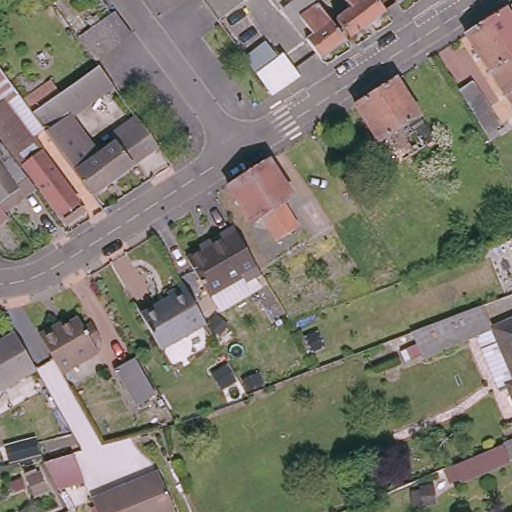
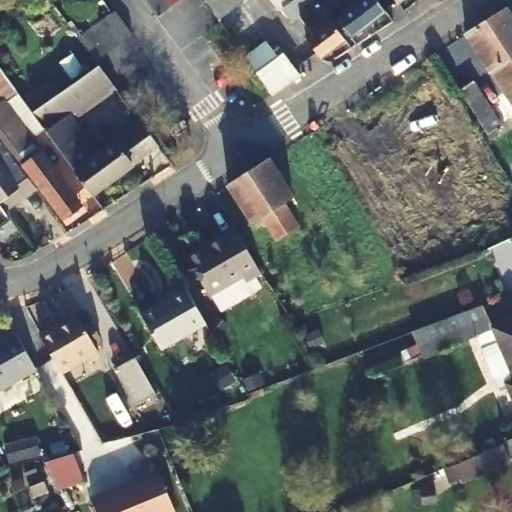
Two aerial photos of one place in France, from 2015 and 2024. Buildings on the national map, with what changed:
unchanged [(171,14),(160,22),(144,0),(188,0),(184,4),(171,14)]
unchanged [(201,0),(254,0),(220,25),(201,0)]
unchanged [(302,23),(305,20),(287,0),(313,0),(347,46),(322,64),(309,44),(299,33),(299,26),(302,23)]
unchanged [(353,42),(340,24),(353,14),(343,0),(375,0),(389,18),(353,42)]
unchanged [(392,0),(403,0),(396,5),(392,0)]
unchanged [(502,0),(512,15),(512,60),(482,14),(502,0)]
unchanged [(100,23),(107,16),(111,14),(128,36),(117,45),(105,55),(95,64),(77,40),(87,32),(100,23)]
unchanged [(512,60),(512,99),(508,101),(461,26),(482,14),(512,60)]
unchanged [(253,73),(280,54),(296,75),(269,94),(253,73)]
unchanged [(95,64),(110,84),(69,115),(97,156),(114,144),(129,164),(88,195),(40,129),(28,114),(95,64)]
unchanged [(58,214),(0,138),(0,75),(7,84),(13,93),(28,114),(40,129),(27,139),(74,202),(58,214)]
demolished [(379,144),(355,107),(375,94),(396,81),(419,118),(410,124),(426,149),(413,157),(404,163),(389,138),(379,144)]
unchanged [(474,92),(497,128),(484,135),(462,100),(474,92)]
unchanged [(114,144),(107,134),(143,108),(151,116),(166,139),(129,164),(114,144)]
unchanged [(1,212),(0,211),(0,144),(33,188),(1,212)]
unchanged [(293,232),(282,239),(266,214),(256,220),(232,183),(254,169),(273,157),(297,194),(287,200),(303,225),(293,232)]
unchanged [(8,223),(0,228),(0,211),(1,212),(8,223)]
unchanged [(261,274),(246,283),(243,278),(210,297),(188,259),(222,240),(220,237),(235,228),(261,274)]
unchanged [(509,239),(512,237),(512,246),(509,239)]
unchanged [(162,347),(144,315),(171,299),(167,294),(184,284),(206,322),(162,347)]
unchanged [(491,325),(512,317),(512,400),(508,391),(503,383),(497,385),(475,334),(422,357),(416,339),(413,334),(483,304),(486,311),(491,325)]
unchanged [(48,334),(64,325),(66,330),(90,317),(109,349),(69,372),(48,334)]
unchanged [(43,367),(0,392),(0,344),(22,331),(24,334),(43,367)]
unchanged [(137,359),(159,396),(139,407),(117,370),(137,359)]
unchanged [(472,458),(474,457),(506,443),(507,442),(512,452),(512,455),(478,470),(472,458)]
unchanged [(95,499),(167,469),(184,512),(100,512),(95,499)]

